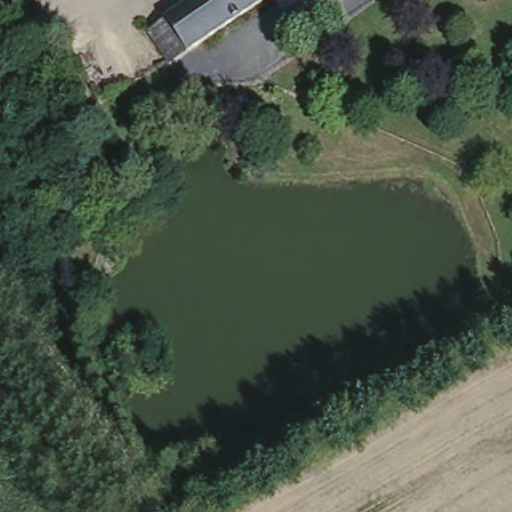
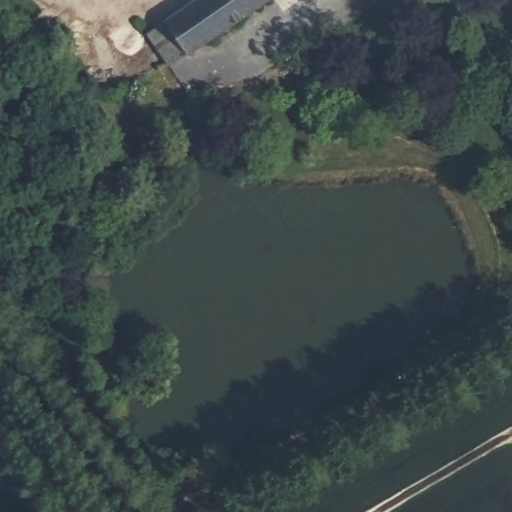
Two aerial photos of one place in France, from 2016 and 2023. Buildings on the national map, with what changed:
unchanged [(149,29),(166,16),(191,0),(263,0),(240,16),(190,50),(172,61),(149,29)]

